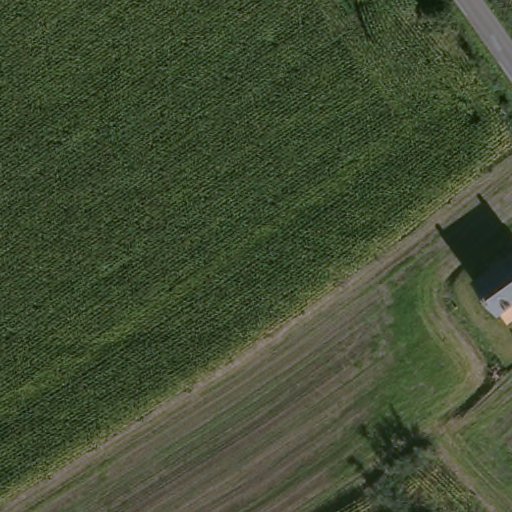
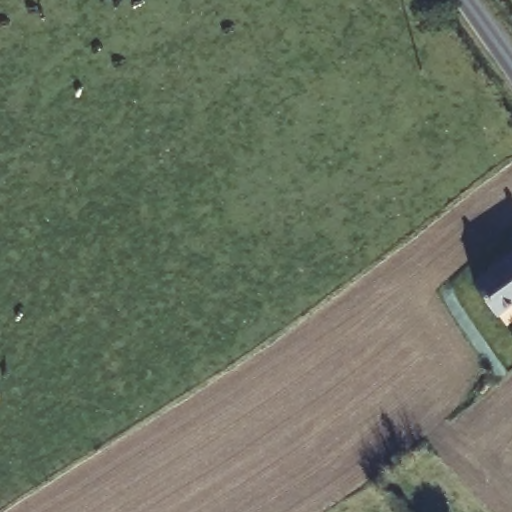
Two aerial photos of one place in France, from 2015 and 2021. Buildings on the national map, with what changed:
unchanged [(510,250),(512,253),(512,301),(492,315),(466,282),(510,250)]

